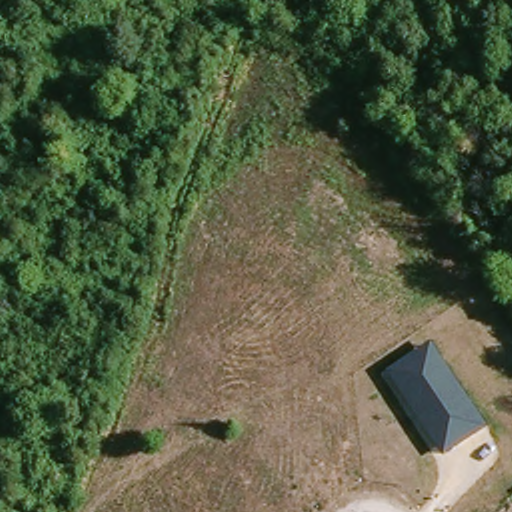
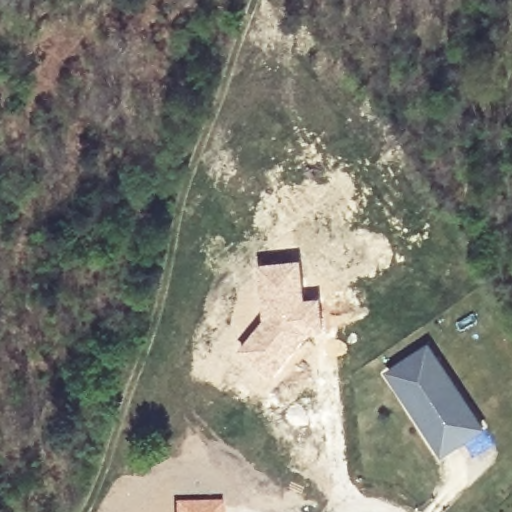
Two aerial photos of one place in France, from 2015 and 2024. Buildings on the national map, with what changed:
new [(263,317),(257,262),(302,257),(307,297),(322,296),(327,332),(313,335),(308,337),(274,377),(240,350),(263,317)]
unchanged [(387,371),(433,341),(489,427),(443,457),(387,371)]
new [(223,512),(171,512),(171,507),(222,505),(223,512)]

